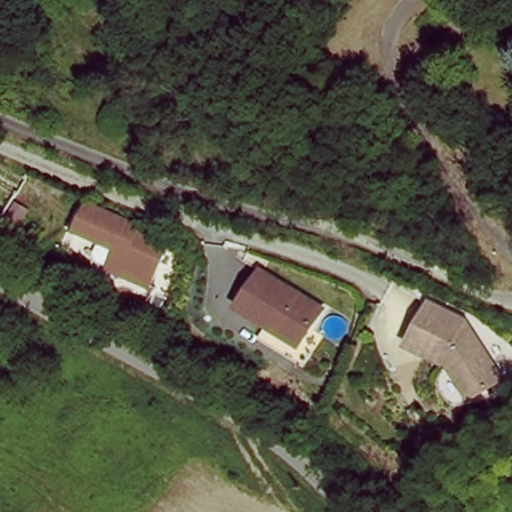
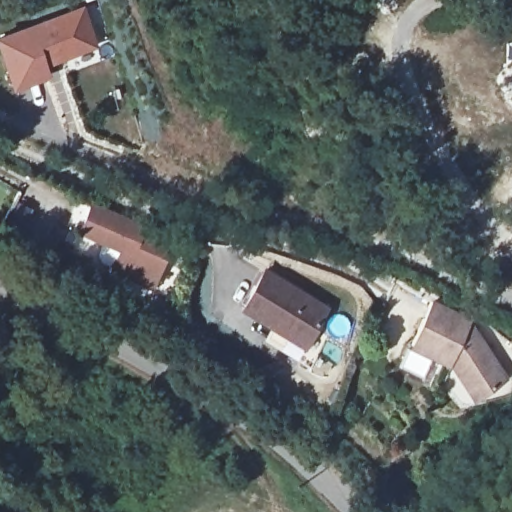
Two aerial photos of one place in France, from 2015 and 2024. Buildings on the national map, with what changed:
new [(100,52),(60,66),(57,58),(45,62),(50,81),(18,92),(1,43),(87,15),(100,52)]
unchanged [(93,203),(143,226),(141,232),(171,246),(153,285),(113,267),(123,247),(81,229),(93,203)]
unchanged [(266,268),(330,306),(308,342),(245,305),(266,268)]
unchanged [(470,322),(478,327),(477,331),(484,335),(510,376),(487,391),(467,362),(454,356),(452,360),(415,342),(436,298),(473,316),(470,322)]

